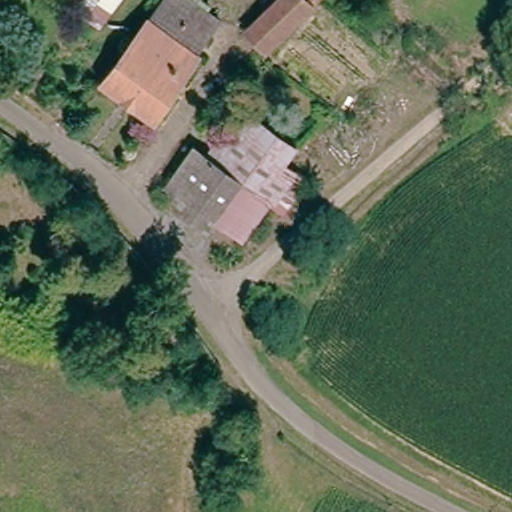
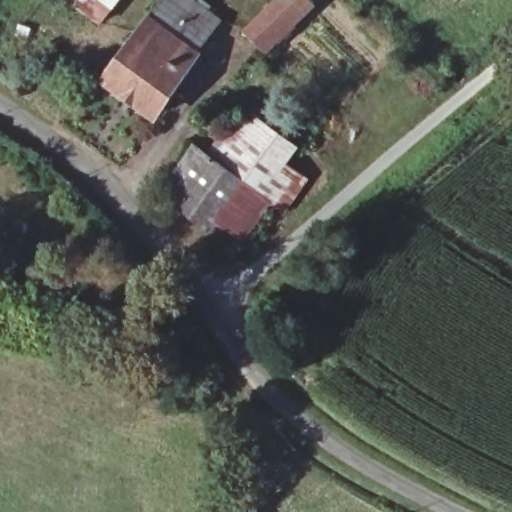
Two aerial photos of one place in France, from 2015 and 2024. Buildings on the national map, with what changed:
unchanged [(66,0),(123,0),(100,28),(66,0)]
unchanged [(106,85),(168,5),(171,0),(198,0),(213,11),(226,22),(152,120),(106,85)]
unchanged [(272,47),(262,40),(251,31),(257,25),(278,0),(309,0),(312,2),(272,47)]
unchanged [(287,164),(318,187),(306,208),(294,200),(283,214),(273,206),(201,151),(216,135),(226,138),(246,109),(301,148),(287,164)]
unchanged [(201,151),(273,206),(283,214),(294,223),(258,256),(246,243),(243,247),(162,192),(193,145),(201,151)]

